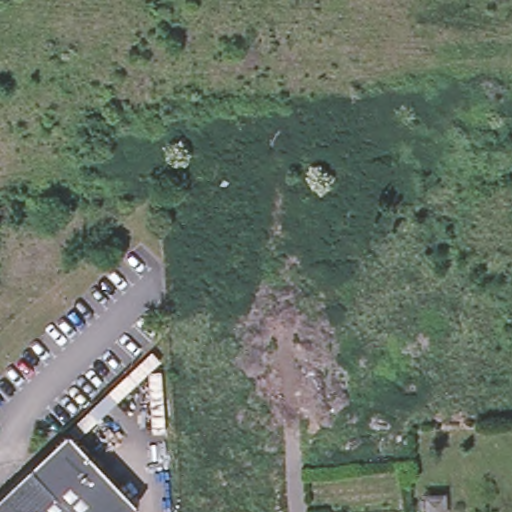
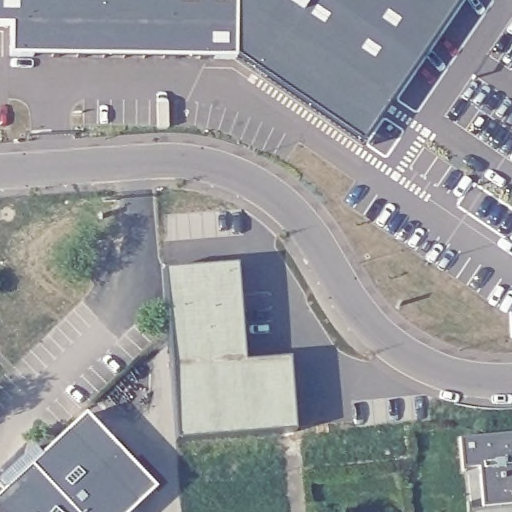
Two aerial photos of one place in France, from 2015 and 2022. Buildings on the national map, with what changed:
new [(360,145),(235,58),(11,56),(11,26),(0,26),(0,0),(459,0),(360,145)]
new [(242,271),(248,365),(296,364),(300,430),(181,436),(171,273),(242,271)]
unchanged [(152,351),(160,360),(152,370),(163,370),(165,433),(151,434),(149,372),(78,440),(70,431),(152,351)]
unchanged [(140,505),(132,512),(75,512),(32,466),(70,431),(78,440),(140,505)]
new [(461,468),(459,438),(512,433),(512,504),(483,506),(480,466),(461,468)]
unchanged [(75,512),(0,512),(0,495),(32,466),(75,512)]

